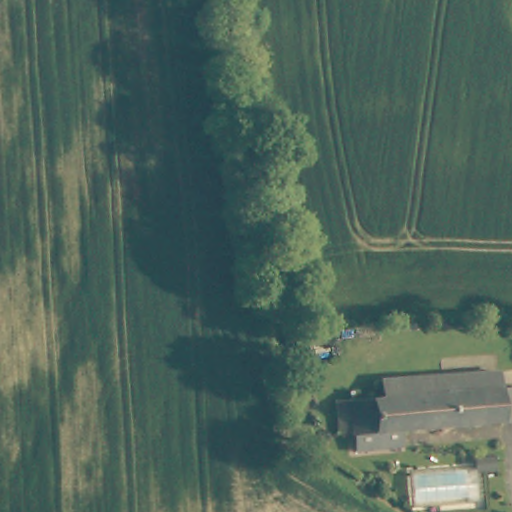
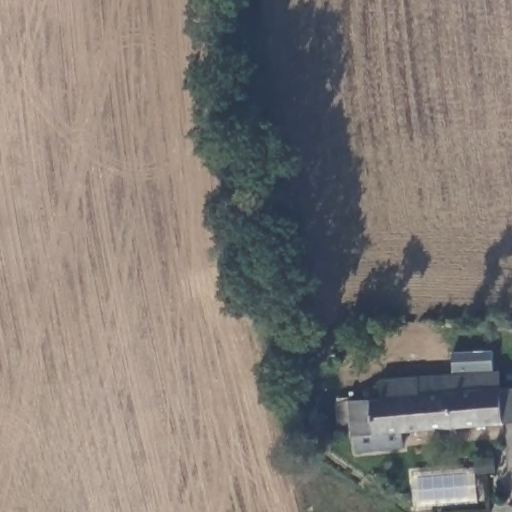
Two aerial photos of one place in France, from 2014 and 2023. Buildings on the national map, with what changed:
unchanged [(358,447),(357,432),(356,432),(356,428),(352,429),(337,430),(336,400),(351,400),(383,398),(385,378),(418,376),(441,375),(442,375),(496,371),(497,387),(512,386),(512,421),(404,428),(406,444),(358,447)]
unchanged [(487,460),(490,495),(490,497),(440,500),(427,501),(427,495),(424,464),(487,460)]

